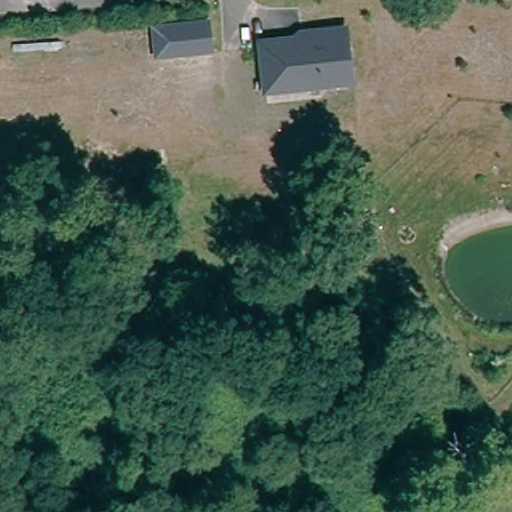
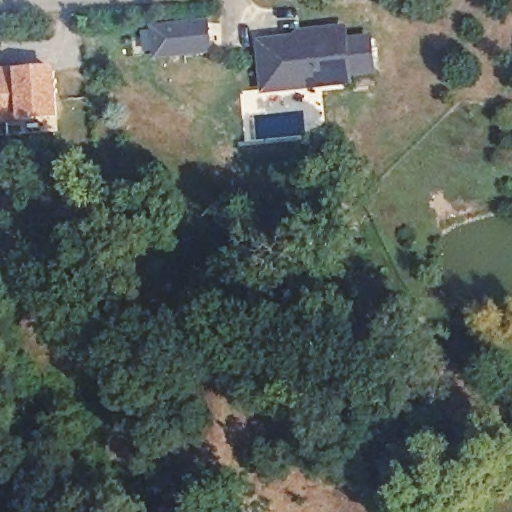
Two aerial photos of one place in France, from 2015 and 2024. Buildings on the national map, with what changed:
unchanged [(215,52),(155,59),(150,24),(210,19),(215,52)]
unchanged [(267,70),(264,43),(295,39),(296,44),(303,43),(302,33),(345,28),(353,78),(282,86),(270,87),(267,70)]
new [(17,70),(59,67),(63,120),(0,125),(0,68),(15,67),(17,70)]

